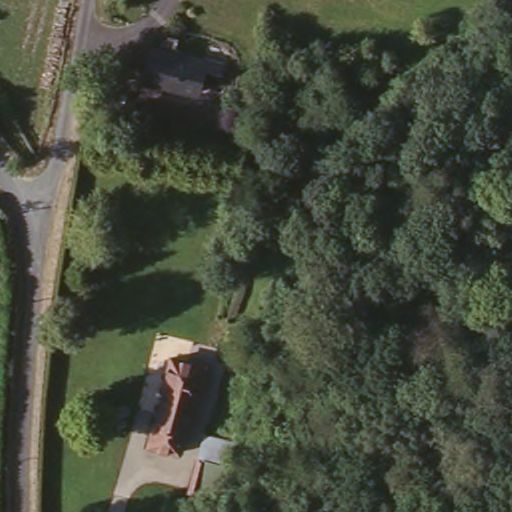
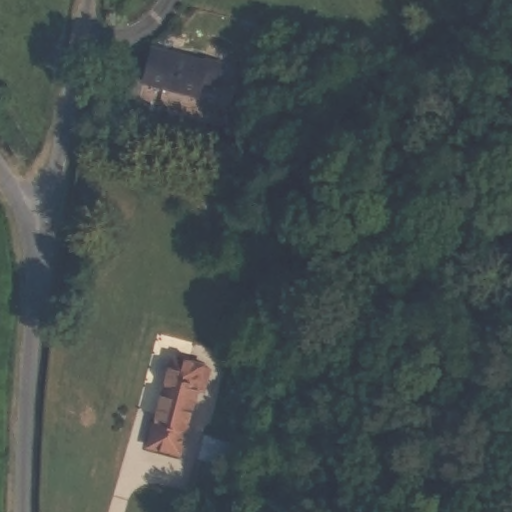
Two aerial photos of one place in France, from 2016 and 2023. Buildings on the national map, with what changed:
unchanged [(223,67),(218,92),(200,89),(196,101),(137,88),(150,51),(223,67)]
unchanged [(171,351),(214,360),(207,385),(197,382),(184,450),(152,440),(171,351)]
unchanged [(199,427),(240,438),(231,476),(190,465),(199,427)]

